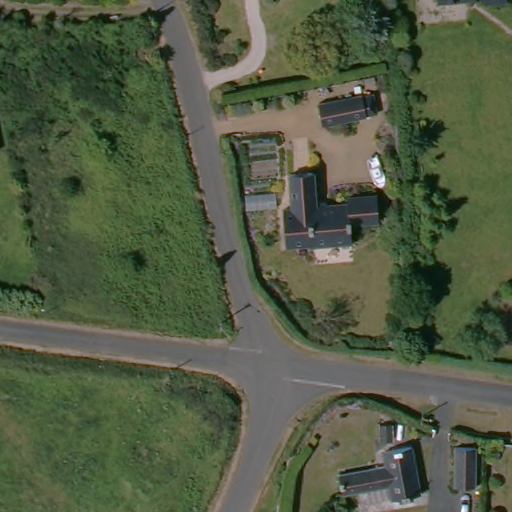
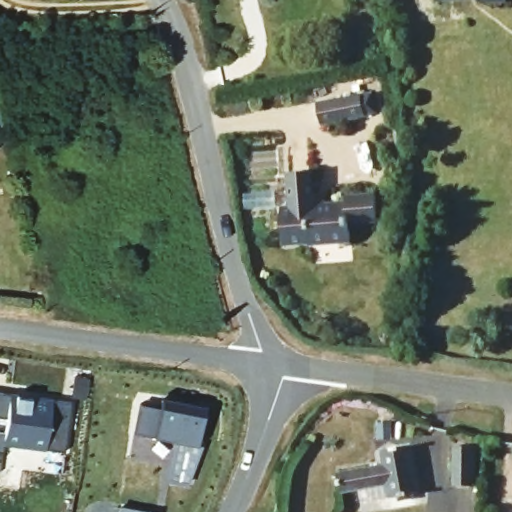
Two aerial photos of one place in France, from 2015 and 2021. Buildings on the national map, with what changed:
unchanged [(181,0),(192,0),(182,3),(181,0)]
unchanged [(434,0),(464,0),(434,3),(434,0)]
unchanged [(483,4),(478,0),(502,0),(502,3),(483,4)]
unchanged [(362,119),(318,127),(315,105),(358,97),(362,119)]
unchanged [(341,239),(306,241),(303,241),(303,240),(278,241),(277,206),(287,205),(286,171),(309,170),(310,204),(332,203),(342,203),(342,202),(342,196),(372,195),(372,220),(344,221),(344,239),(341,239)]
new [(10,397),(11,395),(32,398),(52,400),(69,403),(64,452),(47,449),(4,444),(3,453),(0,452),(0,394),(10,397)]
new [(173,444),(152,441),(153,436),(135,433),(140,403),(159,408),(160,404),(162,395),(206,405),(203,414),(196,445),(203,447),(189,488),(165,480),(173,444)]
unchanged [(416,495),(389,501),(388,500),(389,499),(391,499),(382,457),(379,458),(378,451),(405,446),(416,495)]
unchanged [(473,450),(473,480),(458,479),(458,450),(473,450)]
unchanged [(382,457),(391,499),(389,499),(388,500),(385,488),(338,496),(334,476),(381,466),(379,458),(382,457)]

